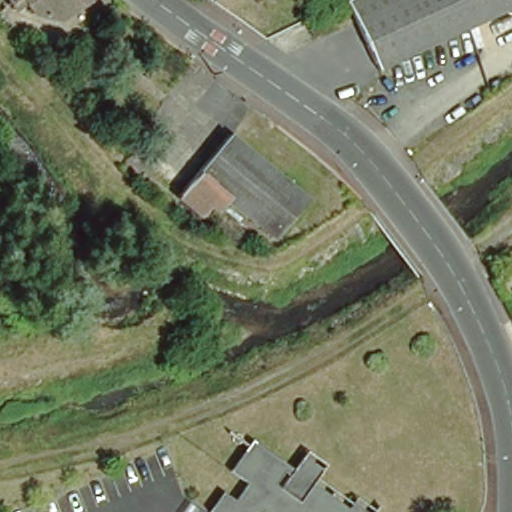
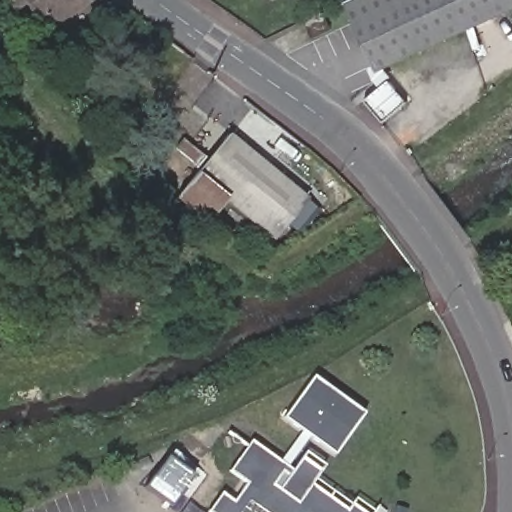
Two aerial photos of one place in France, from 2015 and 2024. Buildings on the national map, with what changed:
unchanged [(9,0),(84,0),(85,3),(58,20),(30,11),(25,3),(14,9),(9,1),(9,0)]
unchanged [(373,72),(342,3),(349,0),(512,0),(512,9),(373,72)]
unchanged [(326,32),(308,40),(301,23),(294,26),(293,24),(318,12),(319,14),(326,32)]
unchanged [(302,198),(272,235),(225,198),(216,210),(206,202),(197,214),(175,196),(195,173),(225,134),(302,198)]
unchanged [(172,191),(135,167),(149,146),(187,170),(172,191)]
new [(312,376),(363,413),(333,454),(282,417),(312,376)]
unchanged [(226,498),(234,503),(245,485),(234,476),(229,472),(246,446),(250,442),(291,471),(300,458),(321,471),(312,486),(345,509),(348,504),(360,512),(208,512),(220,494),(226,498)]

